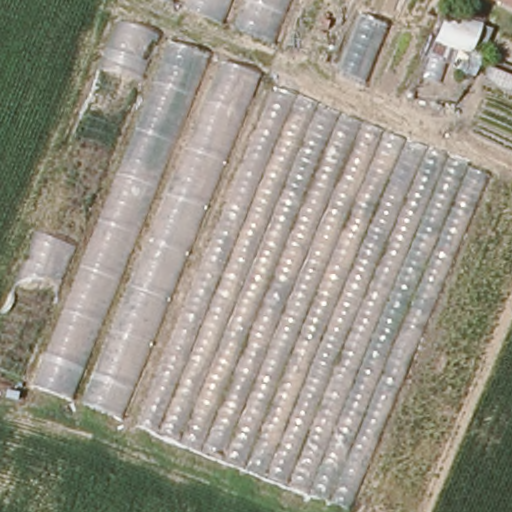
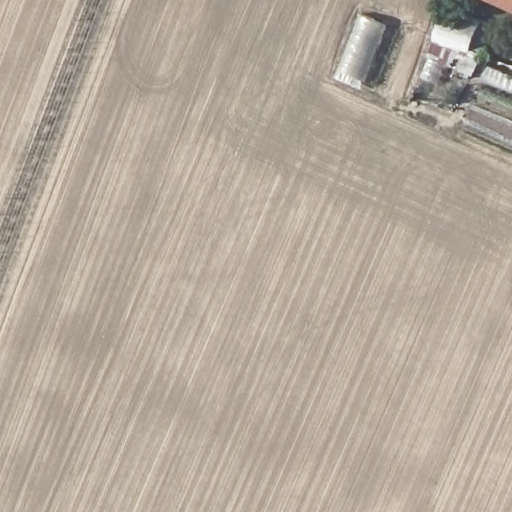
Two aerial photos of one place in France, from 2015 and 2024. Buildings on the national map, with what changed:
demolished [(129,0),(439,0),(399,101),(277,57),(265,80),(512,174),(512,329),(436,512),(335,512),(119,429),(0,385),(0,305),(129,0)]
unchanged [(512,0),(512,3),(506,0),(512,0)]
unchanged [(477,24),(467,49),(440,37),(450,11),(477,24)]

